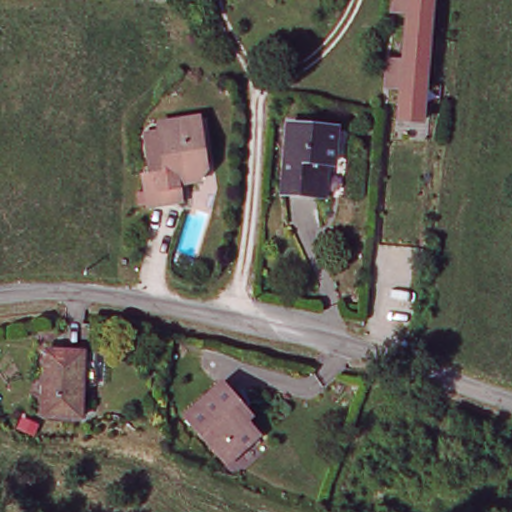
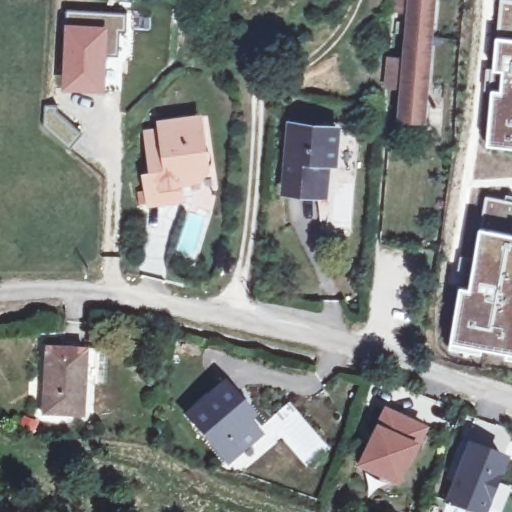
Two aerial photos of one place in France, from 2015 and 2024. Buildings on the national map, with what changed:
unchanged [(425,115),(402,113),(405,81),(392,80),(393,55),(407,57),(412,5),(398,4),(398,0),(435,0),(425,115)]
new [(485,143),(497,0),(512,0),(512,146),(485,143)]
new [(65,9),(127,13),(125,30),(120,30),(118,56),(108,55),(105,93),(61,90),(65,9)]
new [(45,105),(55,107),(82,131),(70,147),(42,125),(45,105)]
unchanged [(143,173),(150,172),(145,130),(160,128),(159,120),(184,117),(187,138),(192,137),(204,147),(206,167),(198,178),(178,180),(180,197),(147,201),(147,199),(139,200),(138,190),(145,189),(143,173)]
unchanged [(318,195),(285,192),(291,124),(338,129),(335,162),(330,162),(327,196),(318,195)]
new [(512,201),(512,355),(451,343),(460,283),(470,286),(485,196),(512,201)]
unchanged [(44,413),(47,348),(85,350),(97,351),(96,383),(83,382),(82,414),(44,413)]
unchanged [(227,379),(237,393),(243,402),(238,405),(259,434),(223,460),(187,409),(223,382),(227,379)]
new [(383,407),(426,428),(416,445),(397,487),(353,468),(374,426),(383,407)]
new [(507,456),(487,512),(466,512),(442,503),(465,443),(507,456)]

